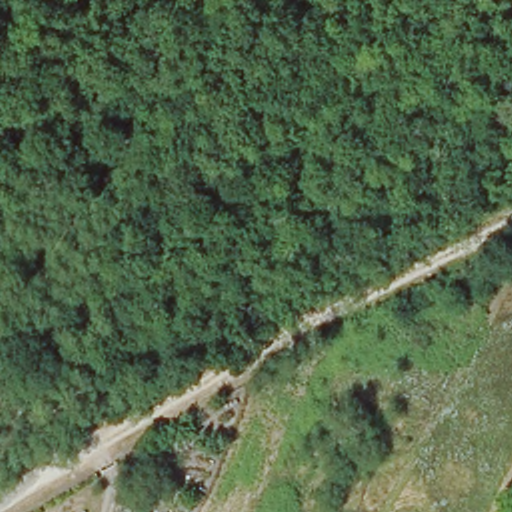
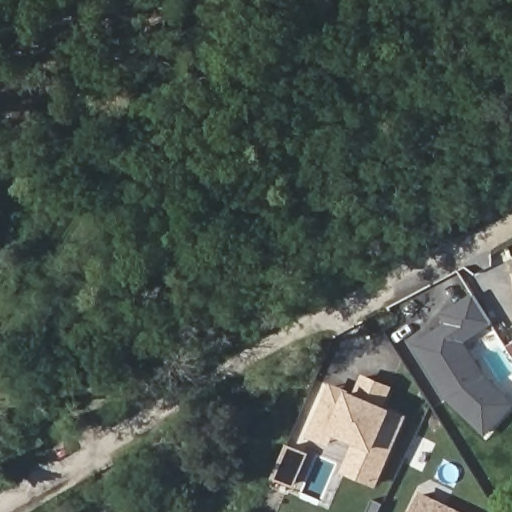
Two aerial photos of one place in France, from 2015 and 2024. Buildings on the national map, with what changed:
new [(448,322),(442,314),(473,294),(492,325),(466,342),(485,375),(512,399),(512,408),(487,436),(448,399),(413,344),(448,322)]
new [(332,447),(308,436),(331,382),(355,392),(364,373),(394,386),(386,406),(393,413),(407,420),(378,487),(342,472),(354,443),(337,435),(332,447)]
new [(295,488),(274,478),(289,444),(310,453),(295,488)]
new [(465,512),(411,512),(422,491),(465,512)]

